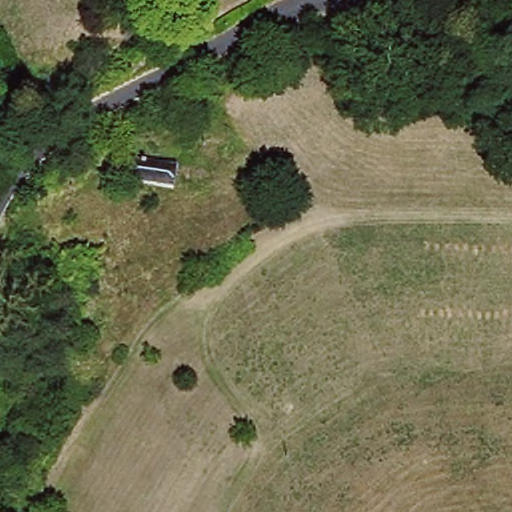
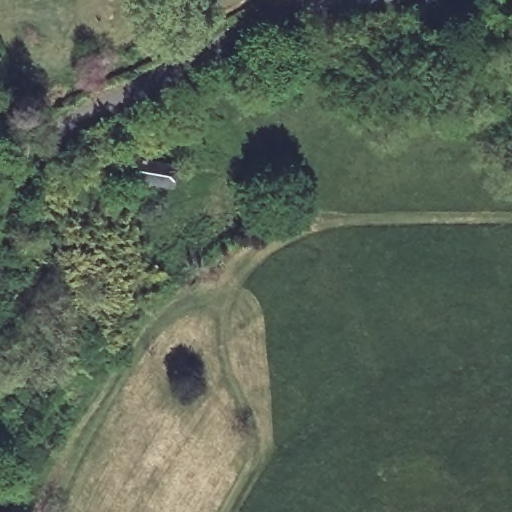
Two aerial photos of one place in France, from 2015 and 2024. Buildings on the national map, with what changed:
unchanged [(177,53),(170,33),(167,21),(195,8),(210,35),(177,53)]
unchanged [(186,190),(128,181),(132,159),(190,168),(186,190)]

